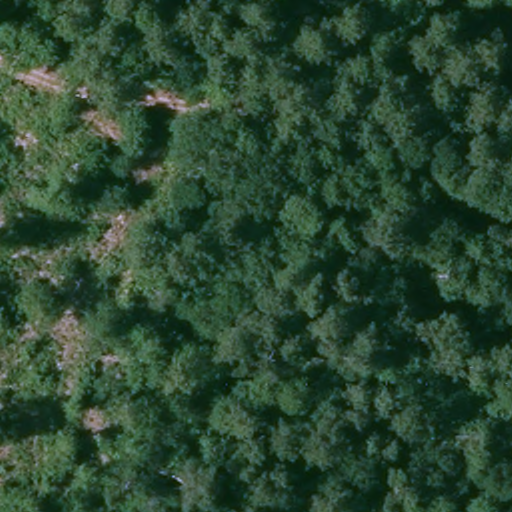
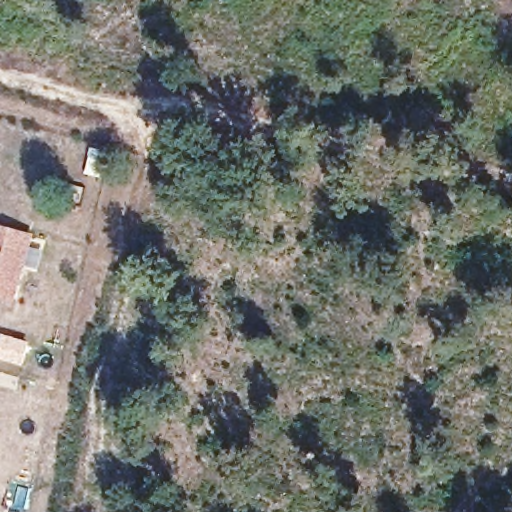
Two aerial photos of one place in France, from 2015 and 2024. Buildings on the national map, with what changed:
new [(33,234),(16,299),(0,295),(0,225),(33,234)]
new [(1,333),(30,341),(22,366),(0,359),(0,337),(1,333)]

